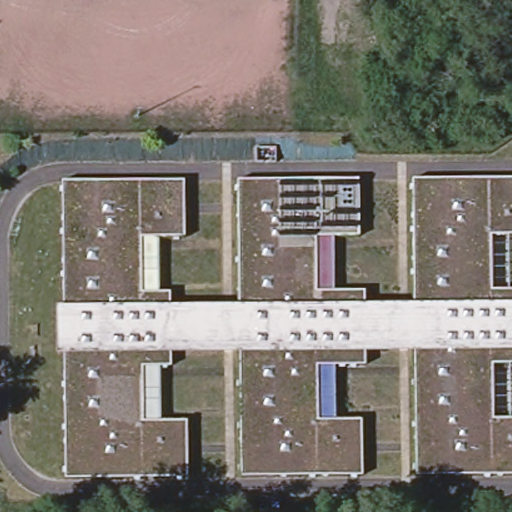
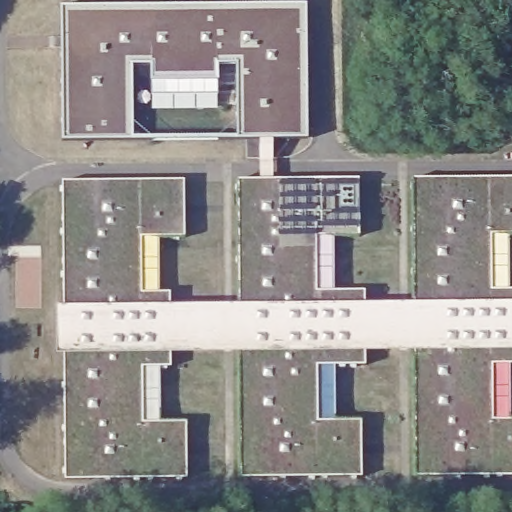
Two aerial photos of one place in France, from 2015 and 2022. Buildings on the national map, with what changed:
new [(62,141),(61,5),(307,3),(308,139),(238,139),(237,63),(218,64),(218,93),(166,94),(165,80),(152,80),(151,64),(133,65),(133,139),(62,141)]
demolished [(275,144),(275,160),(255,160),(255,145),(275,144)]
unchanged [(63,252),(63,174),(149,175),(182,175),(182,225),(182,232),(152,232),(142,232),(139,232),(139,235),(138,287),(150,287),(168,287),(169,303),(237,303),(237,212),(236,175),(356,176),(357,233),(345,233),(313,233),(313,288),(335,288),(362,288),(362,305),(411,305),(411,177),(512,177),(512,234),(487,234),(487,289),(512,289),(512,363),(487,363),(487,418),(512,418),(512,475),(411,475),(411,378),(411,346),(362,346),(362,362),(321,362),(313,362),(313,402),(313,406),(313,417),(357,417),(357,474),(236,474),(236,439),(236,421),(236,344),(170,343),(170,361),(162,361),(140,361),(140,415),(171,416),(182,416),(182,435),(182,454),(182,473),(117,473),(62,472),(63,252)]
unchanged [(258,497),(278,496),(278,512),(258,512),(258,502),(258,497)]

